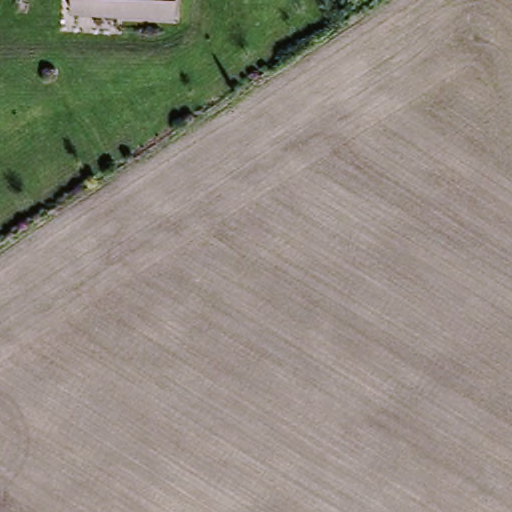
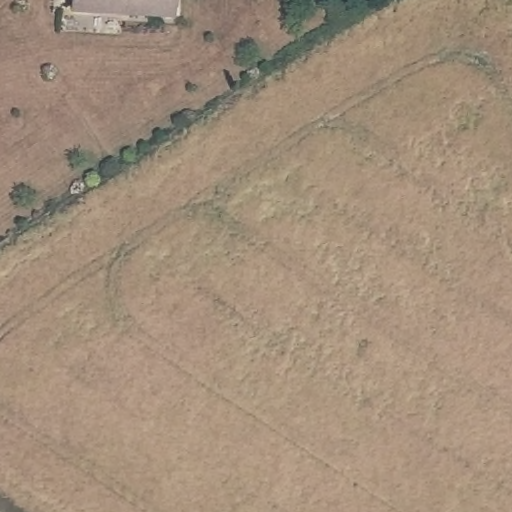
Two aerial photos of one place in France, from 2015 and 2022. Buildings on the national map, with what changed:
unchanged [(175,0),(174,17),(71,14),(71,0),(175,0)]

